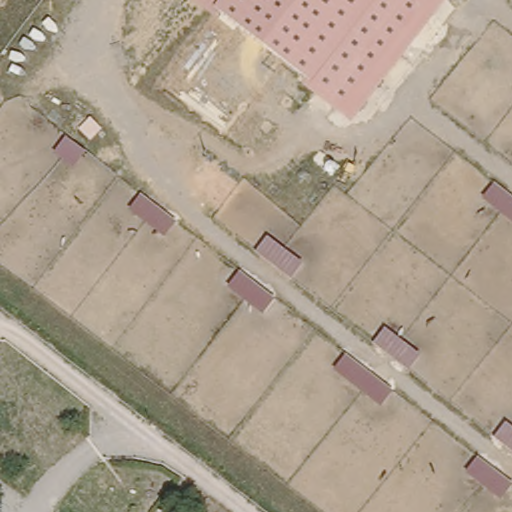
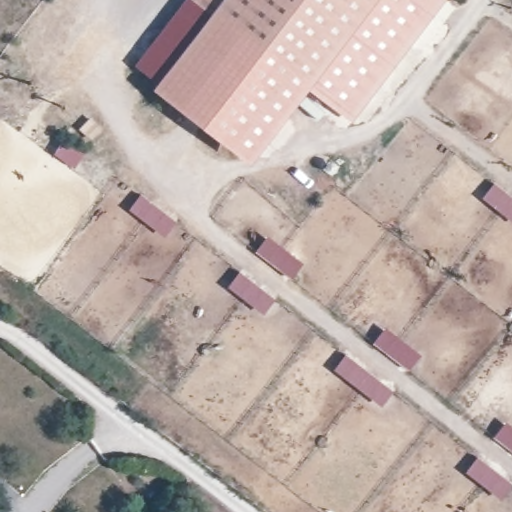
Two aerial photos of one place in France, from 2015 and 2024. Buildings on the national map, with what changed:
new [(152,85),(133,70),(185,0),(197,0),(217,11),(307,79),(303,84),(246,162),(152,85)]
unchanged [(303,84),(307,79),(217,11),(197,0),(444,0),(351,122),(303,84)]
new [(492,182),(512,197),(512,222),(480,198),(492,182)]
new [(140,192),(177,218),(165,235),(128,208),(140,192)]
new [(266,233),(302,261),(290,276),(255,248),(266,233)]
new [(238,268),(274,296),(263,311),(227,283),(238,268)]
new [(384,326),(420,353),(408,368),(373,340),(384,326)]
new [(345,354),(391,389),(379,405),(333,370),(345,354)]
new [(505,420),(512,425),(512,452),(492,437),(505,420)]
new [(478,455),(512,481),(500,496),(467,470),(478,455)]

